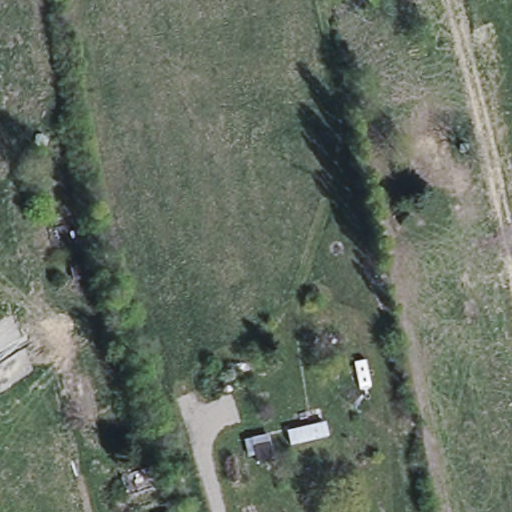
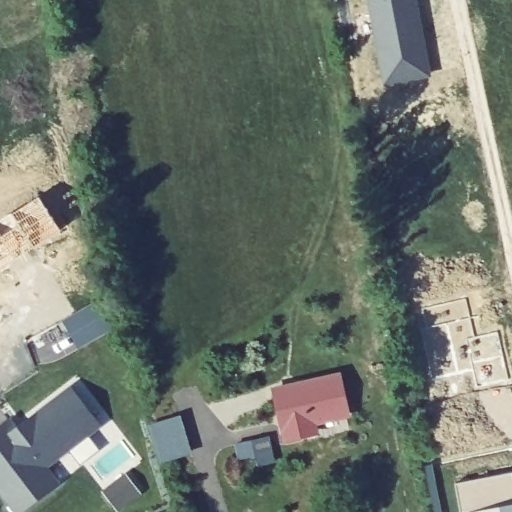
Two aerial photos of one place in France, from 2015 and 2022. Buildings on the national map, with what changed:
new [(430,80),(383,87),(367,0),(416,0),(430,80)]
unchanged [(450,202),(447,185),(446,176),(466,173),(470,199),(450,202)]
new [(60,233),(0,270),(0,222),(39,198),(60,233)]
demolished [(84,256),(64,260),(55,262),(52,248),(80,242),(84,256)]
demolished [(73,285),(70,272),(70,266),(85,262),(89,281),(73,285)]
new [(466,300),(475,337),(499,331),(510,380),(476,386),(473,371),(430,380),(422,328),(425,327),(422,309),(466,300)]
new [(99,302),(112,330),(79,348),(65,322),(99,302)]
new [(319,434),(282,442),(270,387),(340,371),(350,417),(317,425),(319,434)]
new [(30,418),(72,387),(88,408),(100,425),(89,433),(45,467),(59,483),(21,512),(17,512),(0,490),(0,426),(9,419),(17,428),(30,418)]
new [(180,417),(190,452),(163,460),(152,425),(180,417)]
demolished [(286,430),(307,426),(327,422),(331,441),(290,449),(286,430)]
unchanged [(243,441),(257,437),(269,435),(274,453),(247,460),(243,441)]
new [(441,512),(435,512),(426,466),(432,464),(441,512)]
new [(512,472),(512,512),(461,512),(455,483),(512,472)]

